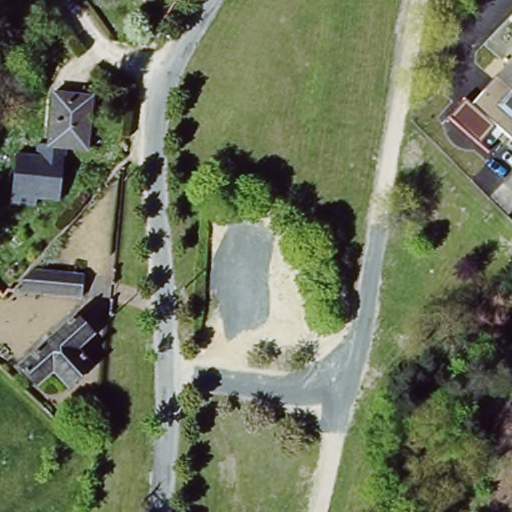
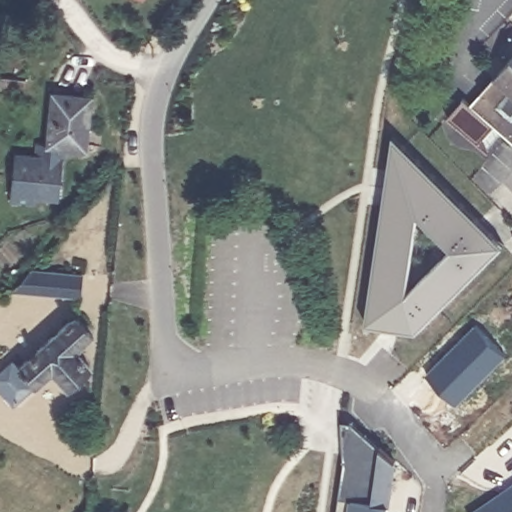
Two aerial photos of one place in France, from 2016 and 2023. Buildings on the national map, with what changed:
unchanged [(143,2),(140,0),(145,0),(143,2)]
unchanged [(465,114),(512,57),(512,152),(465,114)]
unchanged [(47,148),(52,98),(90,102),(85,152),(47,148)]
new [(365,324),(383,206),(387,207),(392,175),(388,170),(393,134),(504,245),(417,331),(365,324)]
unchanged [(65,150),(61,204),(13,197),(18,152),(35,153),(35,146),(47,148),(65,150)]
unchanged [(32,270),(80,275),(79,285),(80,285),(79,299),(13,292),(32,270)]
unchanged [(0,356),(1,355),(13,368),(75,316),(94,339),(78,352),(93,370),(68,390),(53,372),(34,389),(20,375),(12,381),(0,369),(0,356)]
new [(347,460),(342,421),(352,421),(380,446),(397,462),(389,505),(388,512),(338,512),(340,496),(347,460)]
new [(471,512),(512,486),(512,512),(471,512)]

